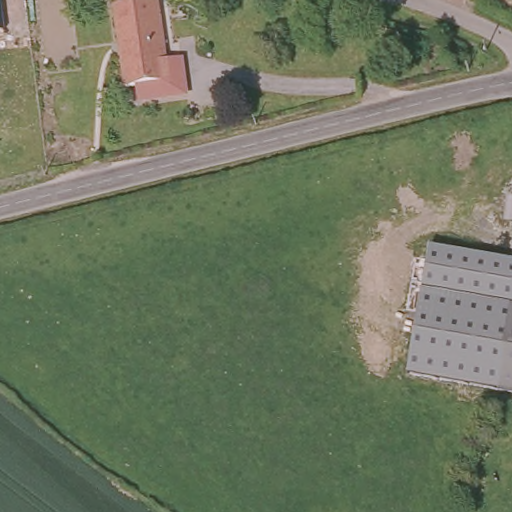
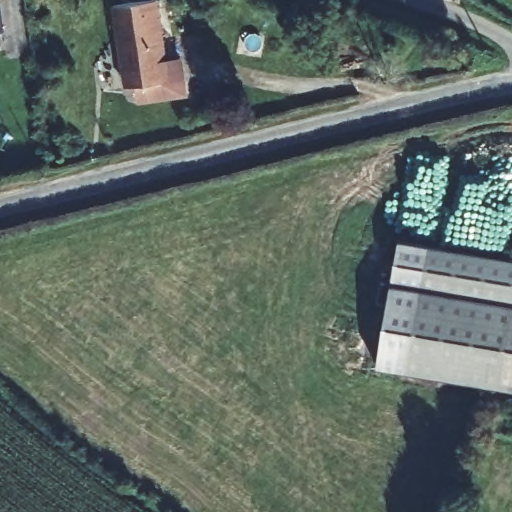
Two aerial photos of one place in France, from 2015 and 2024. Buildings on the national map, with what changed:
unchanged [(5,30),(0,31),(0,0),(1,0),(5,30)]
unchanged [(162,63),(183,63),(183,77),(184,93),(130,95),(129,84),(121,84),(115,0),(159,0),(162,52),(162,63)]
new [(377,366),(400,239),(430,245),(409,373),(377,366)]
unchanged [(497,389),(409,373),(430,245),(512,259),(512,304),(497,389)]
unchanged [(512,304),(512,391),(497,389),(512,304)]

